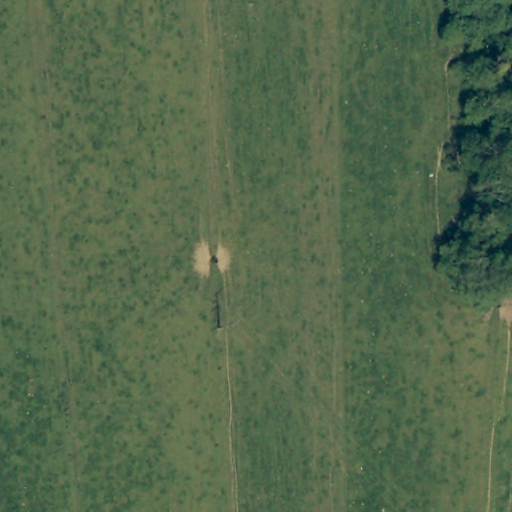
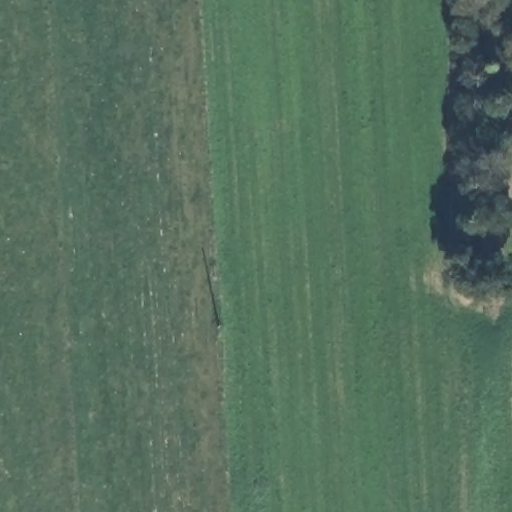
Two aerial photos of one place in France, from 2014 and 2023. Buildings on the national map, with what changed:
[]

